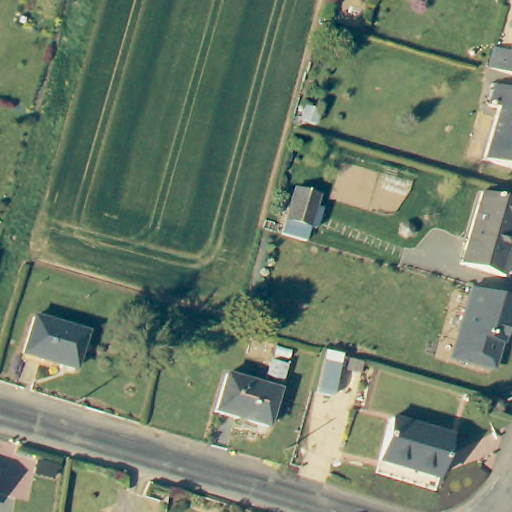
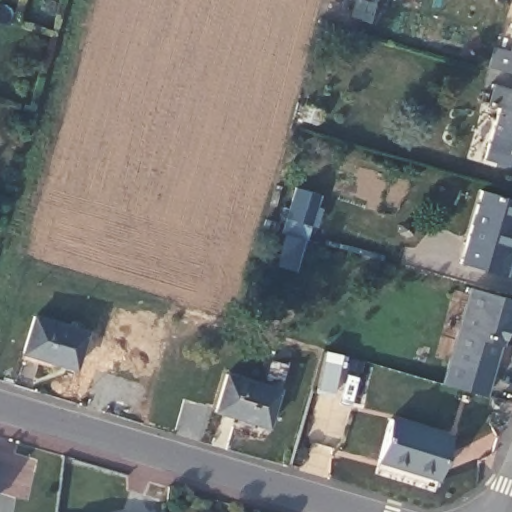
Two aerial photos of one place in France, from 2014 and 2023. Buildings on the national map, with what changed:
unchanged [(496,46),(511,51),(512,48),(512,75),(489,69),(496,46)]
unchanged [(512,166),(481,157),(495,104),(486,102),(491,79),(512,85),(512,166)]
unchanged [(303,229),(281,223),(293,177),(318,184),(305,230),(303,229)]
unchanged [(512,222),(503,251),(511,254),(503,277),(454,263),(475,192),(512,202),(512,222)]
unchanged [(457,358),(452,357),(457,339),(471,287),(512,298),(512,318),(508,317),(501,342),(493,368),(486,366),(457,358)]
unchanged [(86,331),(75,368),(23,353),(35,315),(86,331)]
unchanged [(340,351),(327,392),(312,387),(323,347),(340,351)]
unchanged [(278,385),(267,422),(217,407),(229,370),(278,385)]
unchanged [(451,431),(438,472),(378,455),(392,412),(451,431)]

